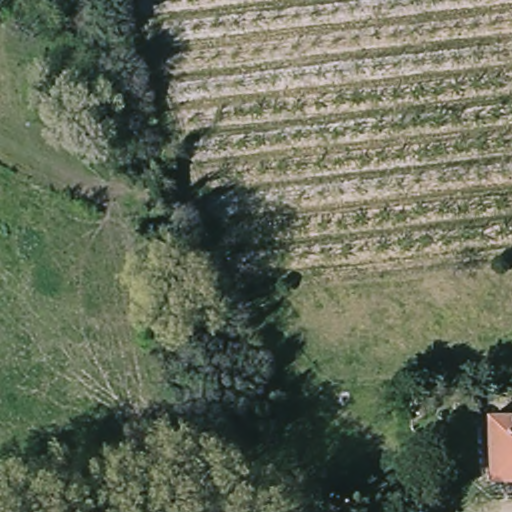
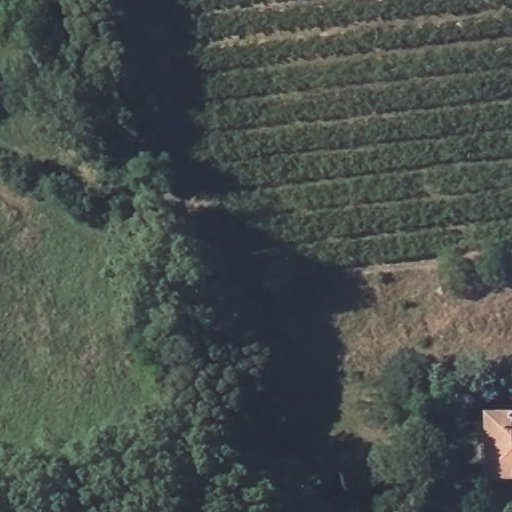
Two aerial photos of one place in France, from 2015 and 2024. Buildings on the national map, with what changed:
unchanged [(482,419),(509,418),(510,430),(512,430),(512,480),(482,479),(482,419)]

